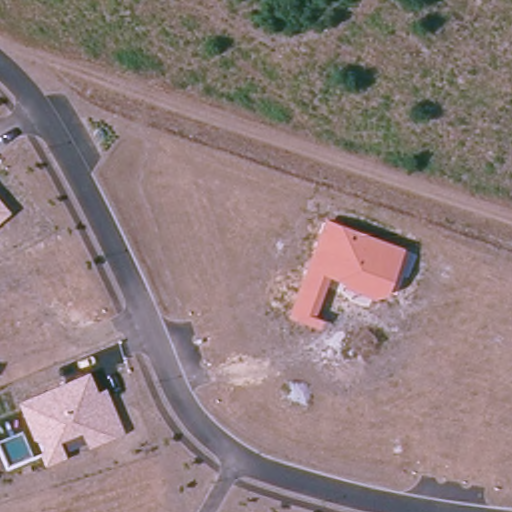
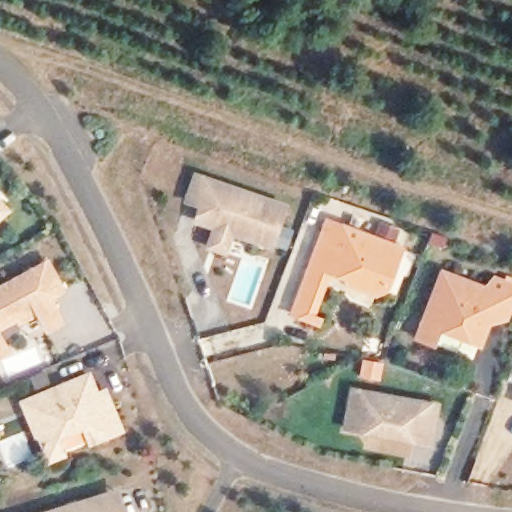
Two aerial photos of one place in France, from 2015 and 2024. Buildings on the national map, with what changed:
new [(272,249),(232,236),(225,256),(205,248),(211,229),(192,222),(198,207),(184,203),(194,172),(287,204),(272,249)]
unchanged [(12,212),(0,223),(0,198),(12,212)]
unchanged [(405,247),(388,293),(373,299),(344,288),(346,282),(330,277),(317,317),(323,321),(321,330),(288,316),(325,218),(405,247)]
new [(46,332),(36,316),(20,325),(18,322),(0,331),(0,285),(49,259),(67,292),(54,299),(66,324),(46,332)]
new [(480,348),(440,333),(434,349),(412,341),(441,270),(485,285),(493,275),(512,282),(512,312),(509,320),(489,326),(480,348)]
new [(10,353),(0,358),(0,336),(10,353)]
unchanged [(97,391),(107,389),(125,433),(88,447),(82,432),(61,441),(68,457),(45,467),(40,452),(45,448),(40,437),(32,441),(17,402),(90,371),(97,391)]
new [(387,440),(349,425),(363,388),(445,419),(435,443),(430,456),(387,440)]
new [(38,512),(118,487),(127,512),(38,512)]

